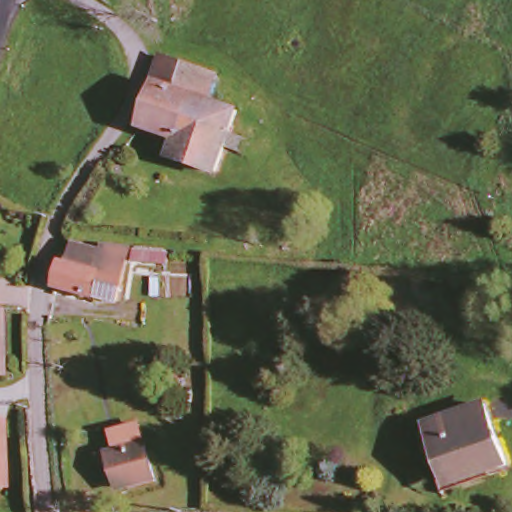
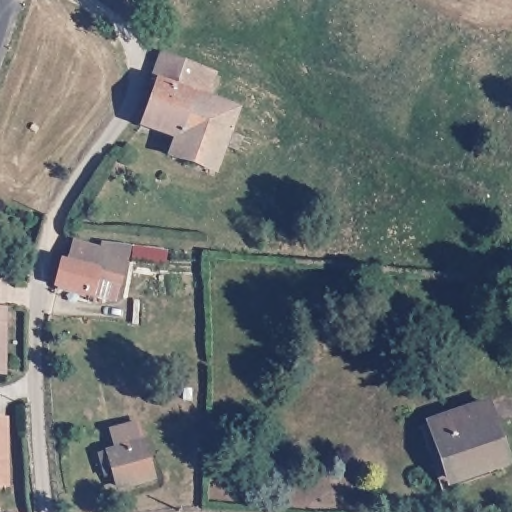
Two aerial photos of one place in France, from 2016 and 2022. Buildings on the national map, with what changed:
unchanged [(176,160),(183,138),(153,127),(168,86),(160,84),(167,56),(221,74),(213,101),(237,110),(217,172),(176,160)]
unchanged [(75,240),(106,250),(105,252),(100,267),(103,268),(98,283),(92,300),(57,288),(75,240)]
unchanged [(164,265),(126,265),(118,288),(98,283),(103,268),(100,267),(105,252),(132,254),(165,256),(164,265)]
unchanged [(0,309),(15,313),(7,345),(5,376),(0,375),(0,309)]
unchanged [(488,400),(511,466),(448,488),(428,422),(488,400)]
unchanged [(9,462),(0,463),(0,417),(10,417),(9,462)]
unchanged [(147,449),(139,485),(110,478),(117,442),(147,449)]
unchanged [(10,491),(0,491),(0,463),(9,462),(10,491)]

